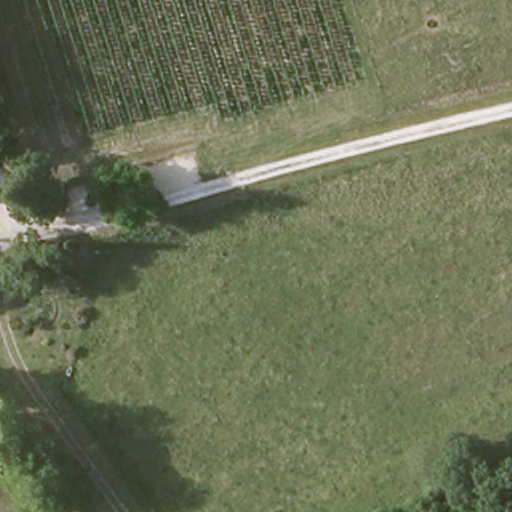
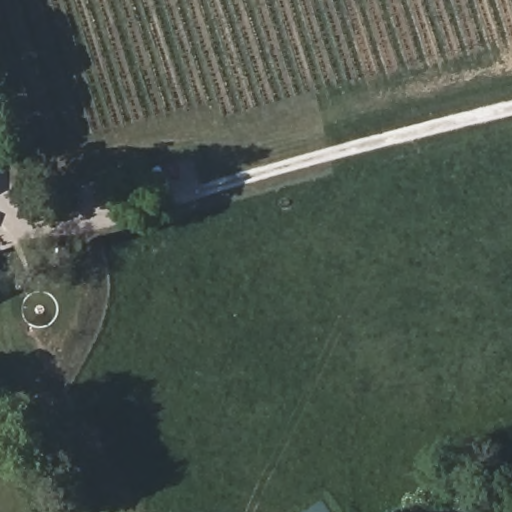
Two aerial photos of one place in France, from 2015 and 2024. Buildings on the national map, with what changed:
[]

